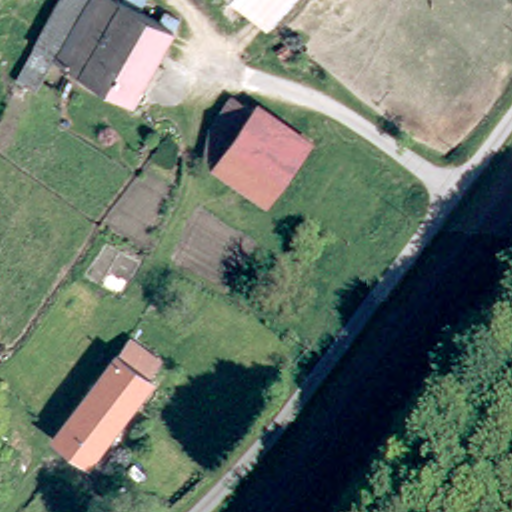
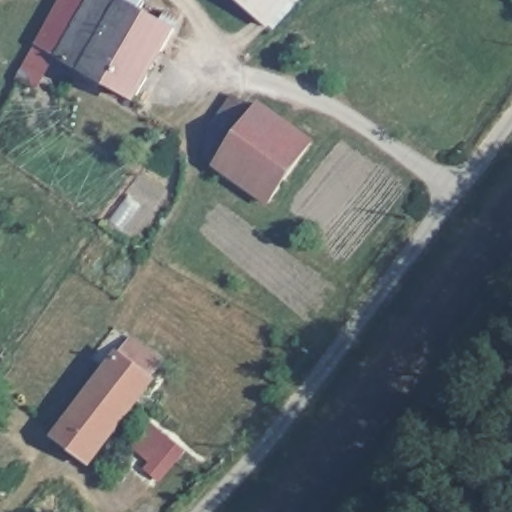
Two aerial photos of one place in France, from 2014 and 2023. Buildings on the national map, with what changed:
unchanged [(23,83),(33,65),(71,0),(125,0),(130,2),(131,0),(144,0),(151,4),(147,12),(170,25),(174,17),(186,24),(141,106),(61,60),(52,76),(42,94),(23,83)]
unchanged [(273,30),(241,0),(302,0),(293,9),(273,30)]
unchanged [(267,106),(320,142),(277,203),(214,159),(222,126),(241,98),(262,113),(267,106)]
unchanged [(123,362),(134,348),(164,370),(153,384),(157,387),(126,425),(92,399),(121,360),(123,362)]
unchanged [(117,456),(99,477),(57,444),(92,399),(126,425),(107,448),(117,456)]
new [(159,482),(142,468),(147,461),(130,447),(150,421),(185,450),(159,482)]
unchanged [(150,512),(127,512),(141,498),(154,508),(150,512)]

